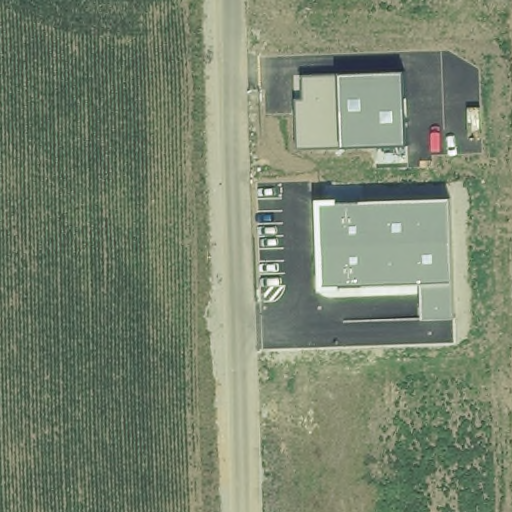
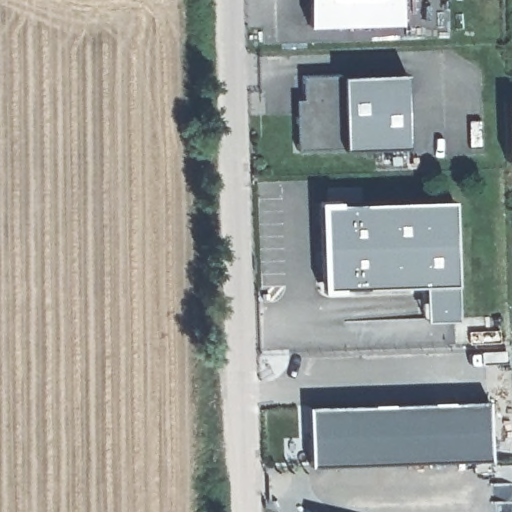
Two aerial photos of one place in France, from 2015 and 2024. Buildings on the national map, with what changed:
new [(316,24),(315,0),(406,0),(406,23),(316,24)]
unchanged [(297,99),(304,99),(304,75),(340,75),(403,73),(407,144),(344,146),(299,149),(297,99)]
new [(504,99),(512,98),(512,159),(505,159),(504,99)]
unchanged [(453,198),(456,318),(426,319),(424,282),(324,285),(321,202),(453,198)]
new [(488,460),(308,467),(307,405),(486,398),(488,460)]

